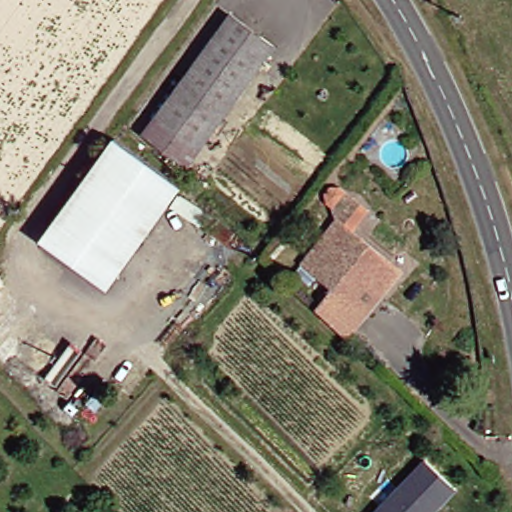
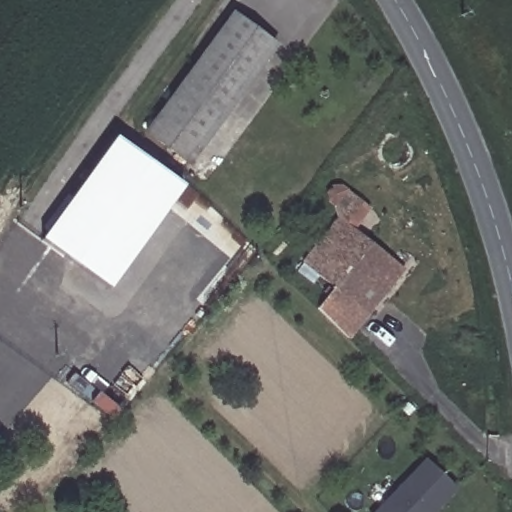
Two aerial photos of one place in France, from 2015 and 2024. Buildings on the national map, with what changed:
unchanged [(239,8),(282,40),(195,158),(152,127),(239,8)]
unchanged [(182,185),(109,287),(43,239),(117,138),(182,185)]
unchanged [(377,209),(360,229),(345,217),(341,206),(335,200),(333,191),(338,185),(348,184),(377,209)]
unchanged [(353,338),(322,308),(340,286),(308,260),(345,217),(360,229),(409,270),(389,295),(373,313),(353,338)]
unchanged [(423,460),(454,489),(435,512),(373,512),(423,460)]

